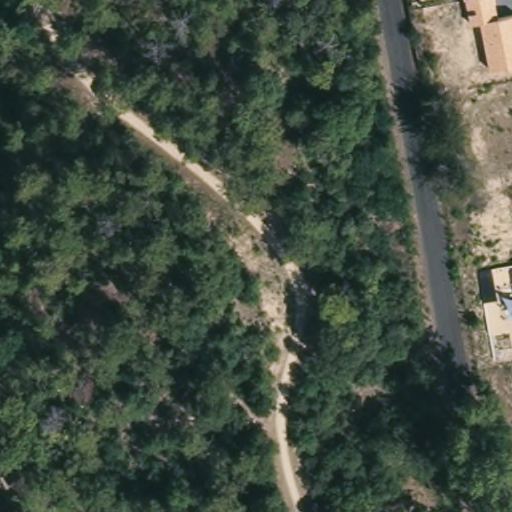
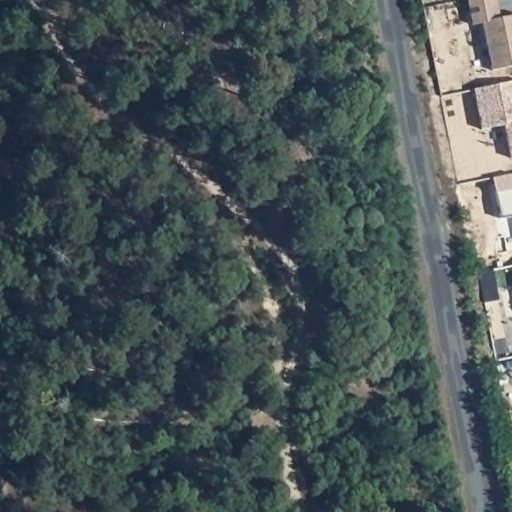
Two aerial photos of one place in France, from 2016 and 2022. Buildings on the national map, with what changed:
unchanged [(468,26),(462,0),(496,0),(499,18),(512,15),(512,67),(489,69),(479,24),(468,26)]
new [(503,125),(481,130),(473,90),(512,82),(512,158),(510,159),(503,125)]

